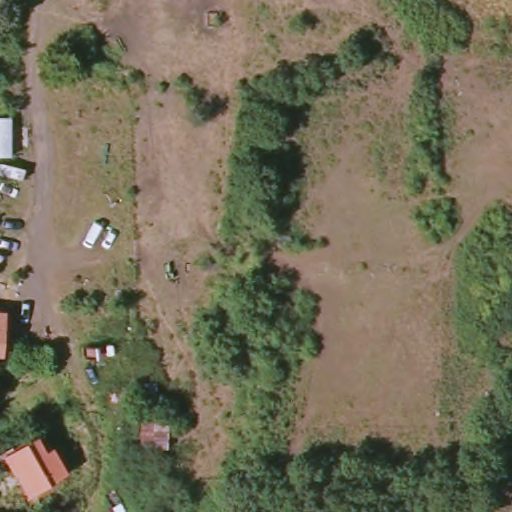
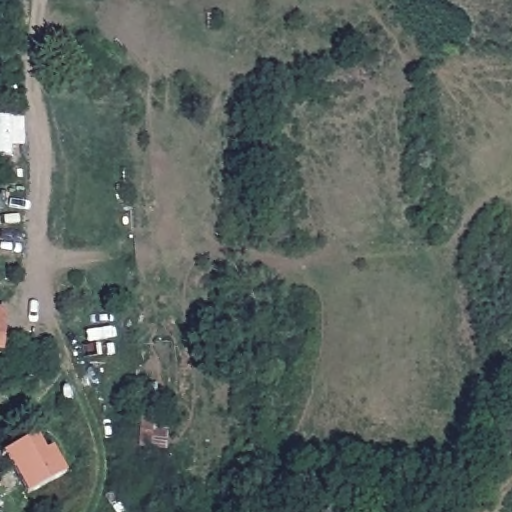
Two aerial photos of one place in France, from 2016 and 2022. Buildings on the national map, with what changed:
unchanged [(2,350),(0,350),(0,312),(5,313),(2,350)]
unchanged [(35,432),(43,448),(53,443),(60,456),(41,467),(51,485),(25,499),(0,451),(35,432)]

